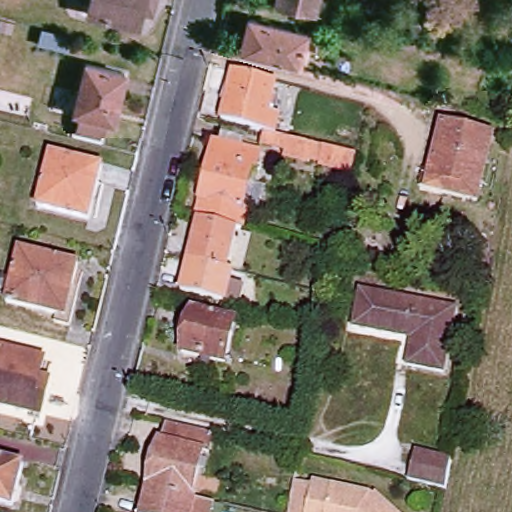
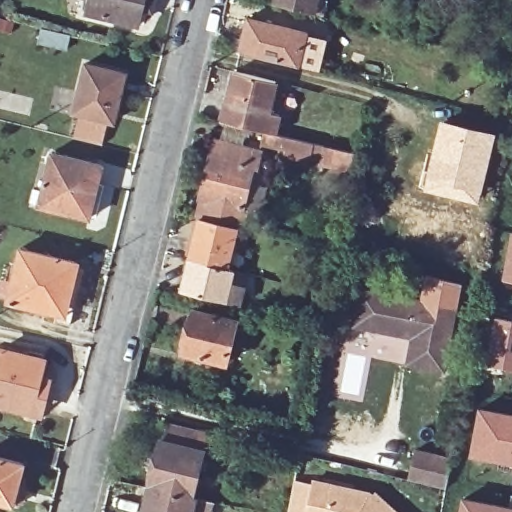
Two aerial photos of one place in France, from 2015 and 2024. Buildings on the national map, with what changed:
unchanged [(86,10),(89,0),(143,0),(137,22),(86,10)]
unchanged [(315,0),(312,12),(274,1),(274,0),(315,0)]
unchanged [(239,51),(248,15),(304,30),(296,66),(239,51)]
unchanged [(117,115),(112,114),(107,137),(102,136),(78,131),(84,107),(78,106),(89,57),(129,66),(117,115)]
unchanged [(261,129),(222,120),(234,71),(273,81),(261,129)]
unchanged [(415,184),(420,168),(428,170),(441,121),(490,132),(473,199),(415,184)]
unchanged [(319,162),(319,161),(311,159),(310,161),(285,156),(286,149),(262,143),(265,130),(354,151),(350,171),(319,162)]
unchanged [(236,226),(199,217),(194,216),(214,137),(259,149),(256,167),(252,167),(242,207),(246,209),(241,227),(236,226)]
unchanged [(88,217),(37,206),(50,152),(101,165),(88,217)]
unchanged [(227,267),(189,258),(199,217),(236,226),(227,267)]
new [(512,230),(512,281),(500,278),(509,230),(512,230)]
unchanged [(73,283),(78,286),(70,322),(54,319),(56,311),(7,300),(20,248),(78,262),(73,283)]
unchanged [(334,258),(325,257),(326,249),(335,251),(334,258)]
unchanged [(181,291),(189,258),(227,267),(232,269),(229,282),(243,287),(239,305),(181,291)]
unchanged [(442,377),(405,368),(411,341),(352,327),(362,290),(456,312),(442,377)]
unchanged [(225,362),(181,351),(191,309),(235,319),(225,362)]
new [(512,321),(512,367),(489,363),(498,318),(512,321)]
unchanged [(41,375),(48,377),(39,417),(30,415),(31,410),(0,402),(0,355),(2,346),(45,357),(41,375)]
new [(512,415),(512,462),(472,455),(481,409),(512,415)]
unchanged [(207,455),(202,455),(191,500),(147,491),(164,426),(211,437),(207,455)]
unchanged [(445,488),(407,479),(412,451),(450,459),(445,488)]
unchanged [(10,510),(0,507),(0,462),(20,467),(10,510)]
unchanged [(292,481),(293,476),(311,480),(367,493),(370,496),(372,492),(394,512),(286,512),(292,481)]
unchanged [(147,491),(191,500),(207,503),(206,512),(141,512),(147,491)]
new [(510,508),(512,500),(512,512),(463,512),(465,500),(510,508)]

